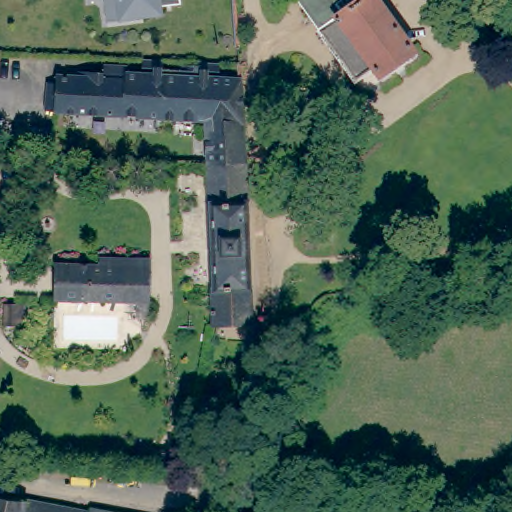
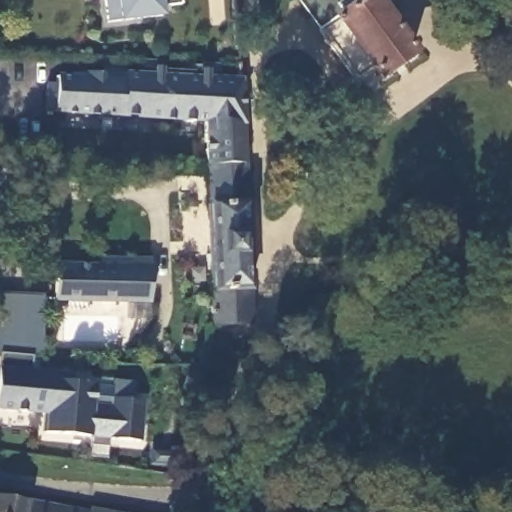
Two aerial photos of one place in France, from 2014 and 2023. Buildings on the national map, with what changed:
unchanged [(163,5),(164,14),(109,20),(107,0),(183,0),(183,2),(163,5)]
unchanged [(376,76),(370,70),(353,80),(318,31),(320,30),(315,23),(299,0),(374,0),(411,51),(376,76)]
unchanged [(159,58),(159,66),(138,65),(138,57),(159,58)]
unchanged [(213,69),(198,67),(198,61),(213,61),(213,69)]
unchanged [(201,166),(200,120),(50,111),(50,109),(41,108),(43,81),(51,82),(52,75),(101,77),(102,64),(124,65),(124,72),(234,77),(237,77),(241,167),(238,167),(201,166)]
unchanged [(202,204),(201,166),(238,167),(241,167),(242,201),(202,204)]
unchanged [(205,292),(202,204),(242,201),(246,291),(205,292)]
unchanged [(54,299),(54,265),(101,266),(101,258),(151,259),(151,267),(151,301),(54,299)]
unchanged [(206,302),(205,292),(246,291),(246,323),(206,323),(206,302)]
new [(41,370),(29,369),(31,356),(0,353),(1,293),(43,295),(42,356),(41,370)]
new [(29,369),(50,371),(70,373),(70,380),(95,383),(93,403),(111,405),(111,397),(144,400),(140,442),(43,433),(45,415),(0,411),(0,353),(31,356),(29,369)]
unchanged [(87,506),(87,504),(128,512),(0,512),(0,490),(87,506)]

